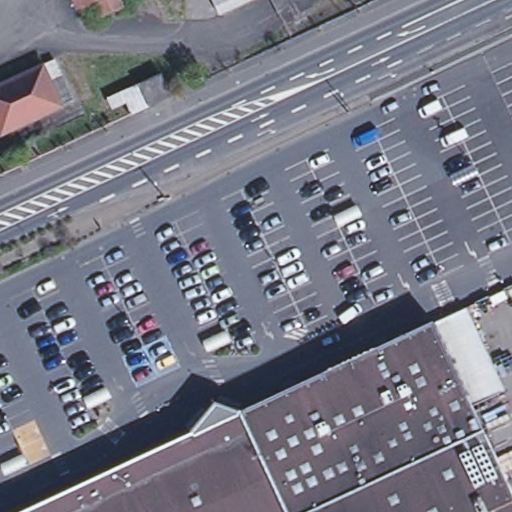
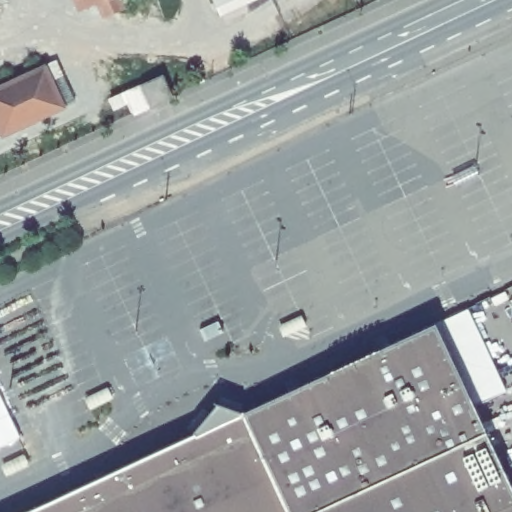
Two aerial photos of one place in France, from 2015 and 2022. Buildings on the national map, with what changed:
unchanged [(125,7),(104,17),(97,2),(81,9),(77,0),(122,0),(125,7)]
unchanged [(221,14),(214,0),(252,0),(221,14)]
unchanged [(51,66),(70,106),(0,139),(0,90),(51,66)]
unchanged [(141,85),(141,84),(162,74),(172,96),(151,105),(135,113),(125,93),(141,85)]
unchanged [(211,404),(235,411),(234,414),(429,322),(512,498),(512,512),(24,512),(189,435),(187,433),(211,404)]

